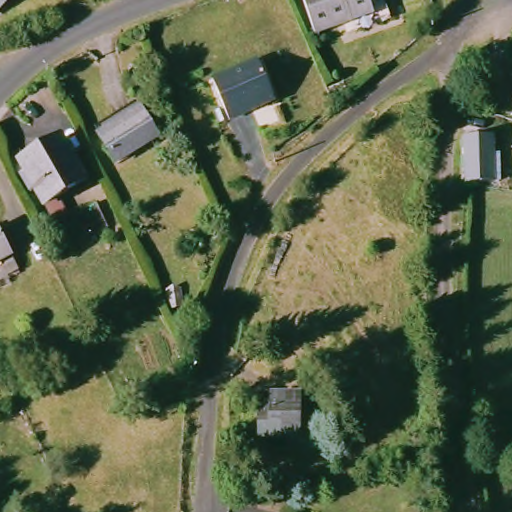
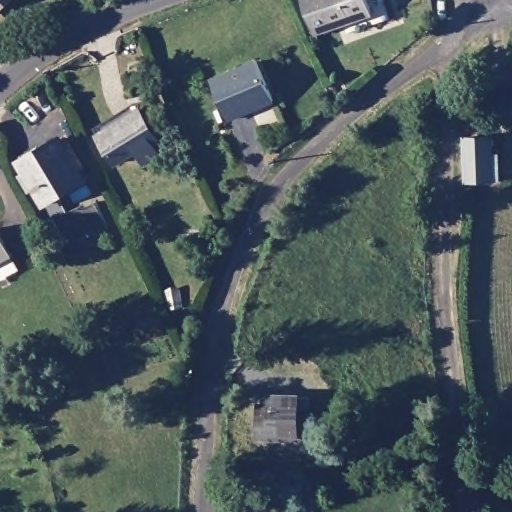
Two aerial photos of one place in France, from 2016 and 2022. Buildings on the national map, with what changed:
unchanged [(0,0),(20,0),(0,20),(0,0)]
unchanged [(321,37),(310,0),(369,0),(377,21),(321,37)]
unchanged [(212,82),(257,61),(276,100),(231,121),(212,82)]
unchanged [(60,144),(37,157),(46,175),(59,167),(65,180),(81,172),(90,191),(50,211),(3,125),(42,106),(60,144)]
unchanged [(146,116),(160,143),(121,164),(106,137),(146,116)]
unchanged [(462,137),(492,136),(493,182),(462,184),(462,137)]
unchanged [(0,287),(0,236),(20,277),(0,287)]
unchanged [(297,436),(260,435),(262,407),(272,407),(272,395),(298,396),(297,436)]

